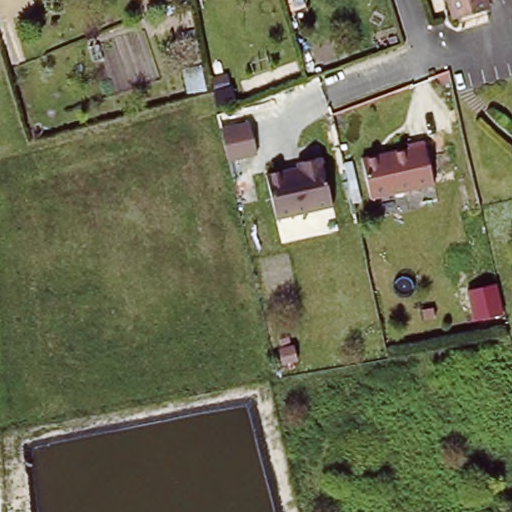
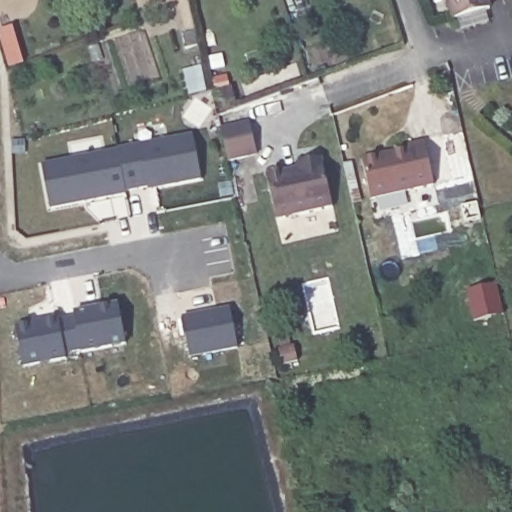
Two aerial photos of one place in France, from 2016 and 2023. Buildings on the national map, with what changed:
unchanged [(486,3),(452,12),(449,0),(485,0),(486,3)]
unchanged [(57,28),(62,26),(65,35),(58,36),(57,28)]
new [(16,27),(25,62),(11,65),(2,31),(16,27)]
unchanged [(249,118),(256,150),(227,156),(220,125),(249,118)]
new [(149,190),(148,187),(125,191),(125,195),(50,209),(41,162),(192,133),(202,180),(149,190)]
unchanged [(440,184),(376,199),(367,158),(413,147),(412,142),(428,140),(440,184)]
unchanged [(326,156),(337,205),(282,216),(272,173),(289,170),(303,167),(301,161),(326,156)]
new [(495,281),(503,312),(474,318),(467,289),(495,281)]
new [(120,302),(127,341),(82,350),(75,311),(120,302)]
new [(191,357),(183,316),(230,308),(238,349),(191,357)]
new [(66,353),(66,358),(22,365),(16,328),(75,317),(80,348),(66,353)]

